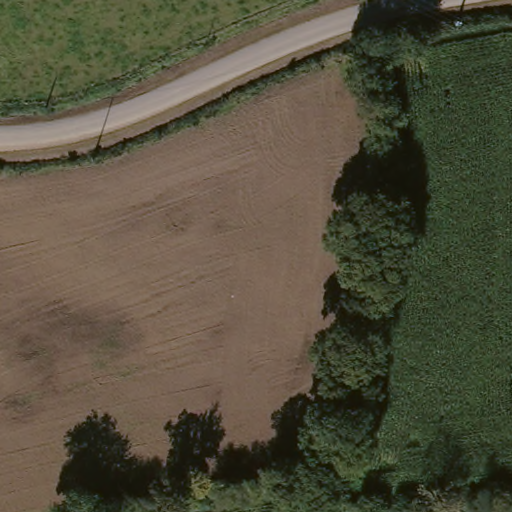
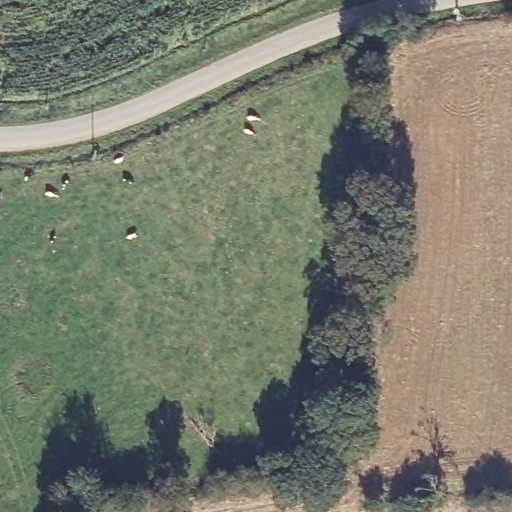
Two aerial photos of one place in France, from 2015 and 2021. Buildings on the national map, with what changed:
[]

